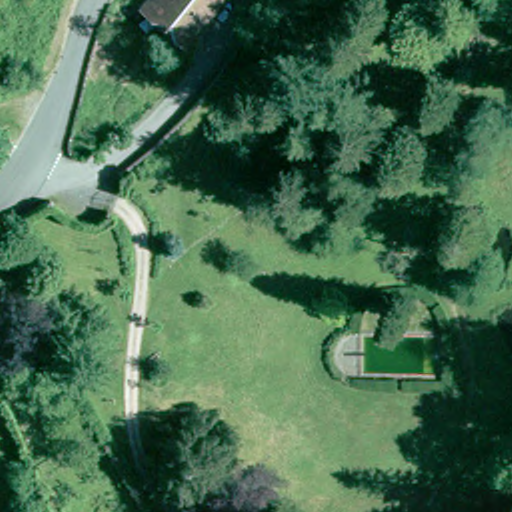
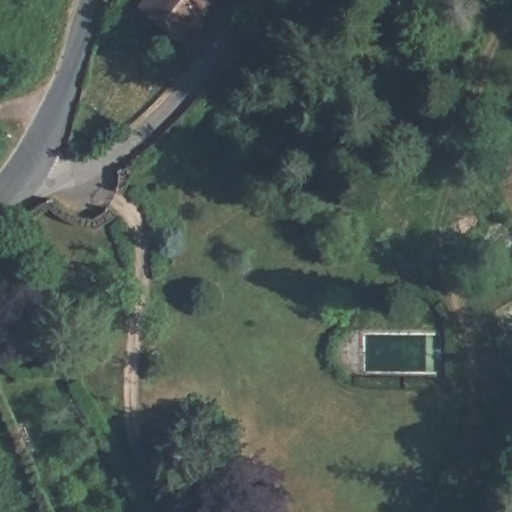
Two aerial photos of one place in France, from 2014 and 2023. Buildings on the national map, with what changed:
unchanged [(150,8),(156,0),(225,0),(193,42),(150,8)]

